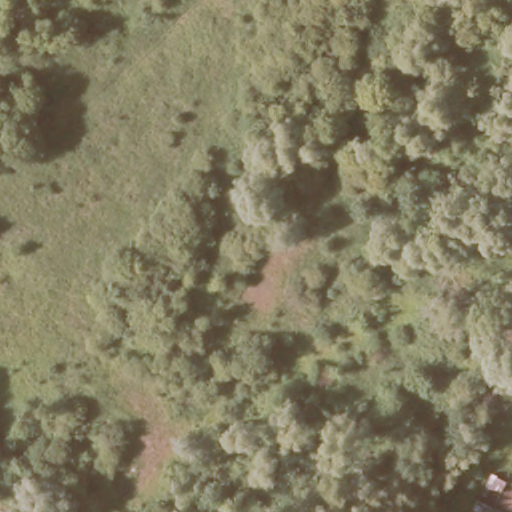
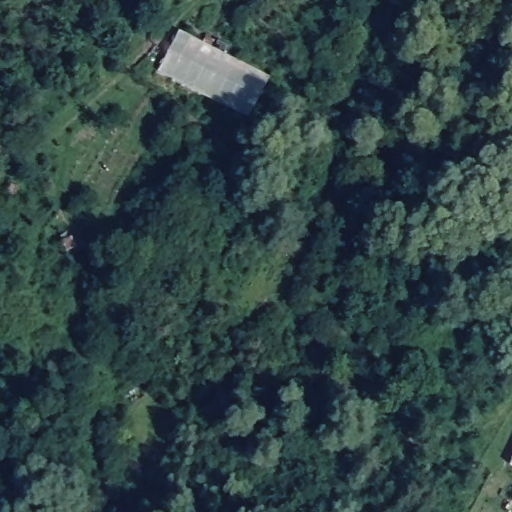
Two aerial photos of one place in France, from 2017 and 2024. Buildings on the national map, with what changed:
new [(252,117),(157,74),(178,32),(271,77),(252,117)]
new [(512,466),(510,465),(512,462),(512,466)]

